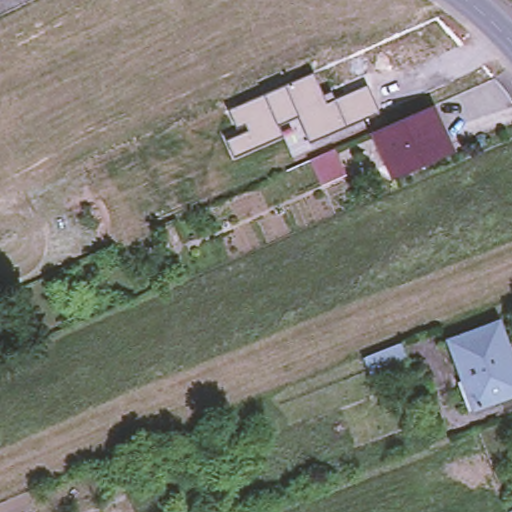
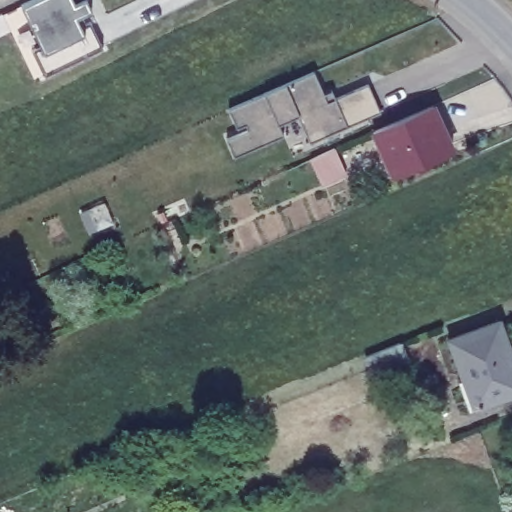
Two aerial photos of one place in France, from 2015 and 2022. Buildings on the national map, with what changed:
new [(43,0),(87,0),(95,14),(80,22),(83,30),(92,26),(105,52),(46,81),(33,54),(42,50),(23,9),(43,0)]
unchanged [(248,128),(240,131),(231,112),(317,75),(326,97),(335,93),(338,101),(371,87),(383,115),(313,146),(301,119),(281,128),(286,139),(237,160),(230,142),(251,133),(248,128)]
unchanged [(430,103),(450,146),(390,173),(371,129),(430,103)]
unchanged [(338,151),(350,177),(334,184),(324,188),(313,161),(322,158),(338,151)]
unchanged [(443,340),(493,323),(512,372),(512,395),(468,410),(443,340)]
unchanged [(404,345),(410,363),(376,377),(370,359),(404,345)]
unchanged [(512,510),(512,512),(511,512),(510,510),(512,510)]

